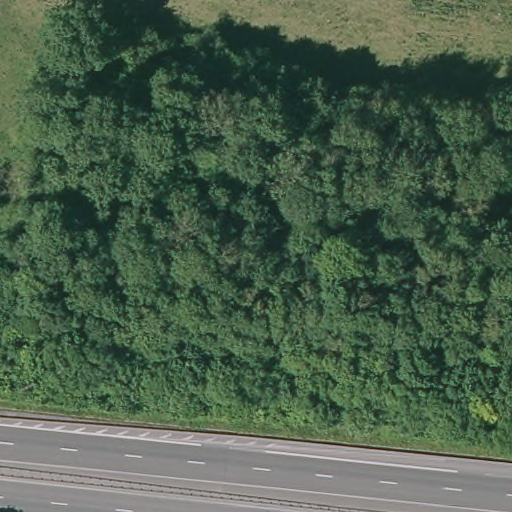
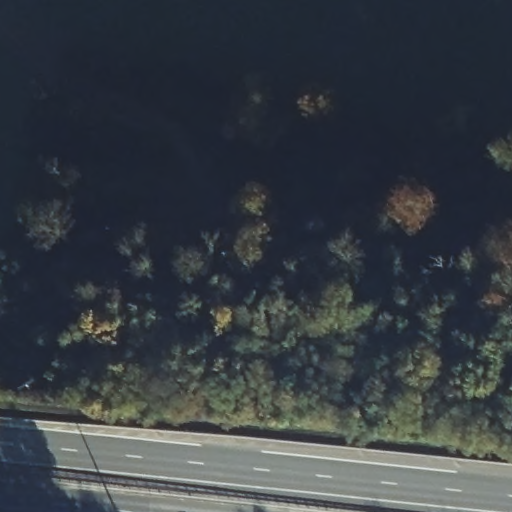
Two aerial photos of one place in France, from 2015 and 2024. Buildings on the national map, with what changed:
[]

